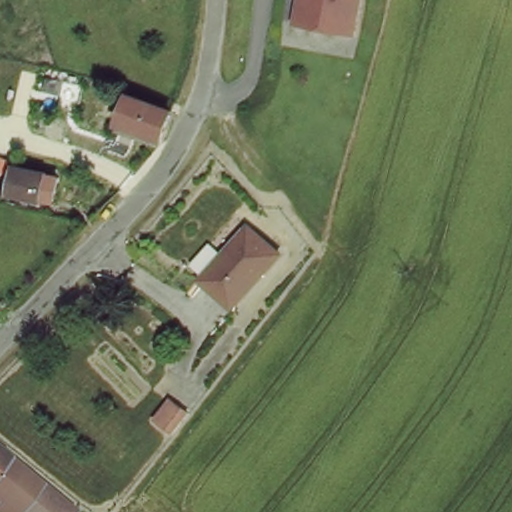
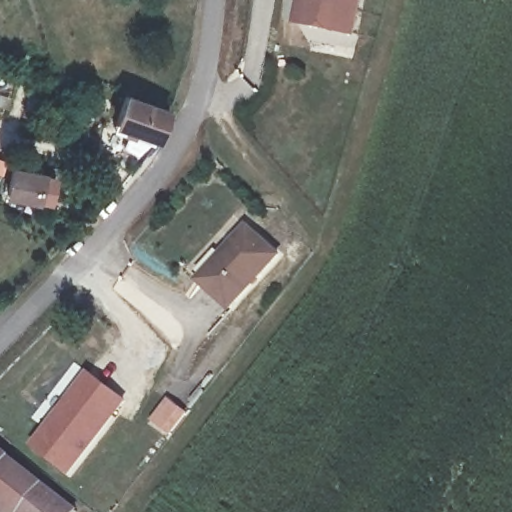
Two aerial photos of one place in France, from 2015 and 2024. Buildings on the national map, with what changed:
unchanged [(357,0),(351,33),(308,28),(296,26),(300,0),(357,0)]
unchanged [(161,135),(158,142),(115,126),(129,102),(166,115),(161,135)]
unchanged [(55,180),(48,211),(2,201),(9,169),(55,180)]
unchanged [(228,260),(226,256),(251,230),(278,258),(229,309),(205,285),(228,260)]
new [(70,475),(33,446),(89,372),(126,402),(70,475)]
unchanged [(156,412),(173,391),(183,400),(166,420),(156,412)]
unchanged [(0,482),(0,452),(14,463),(0,482)]
unchanged [(25,512),(14,512),(0,500),(0,482),(14,463),(45,488),(25,512)]
unchanged [(45,488),(76,512),(25,512),(45,488)]

